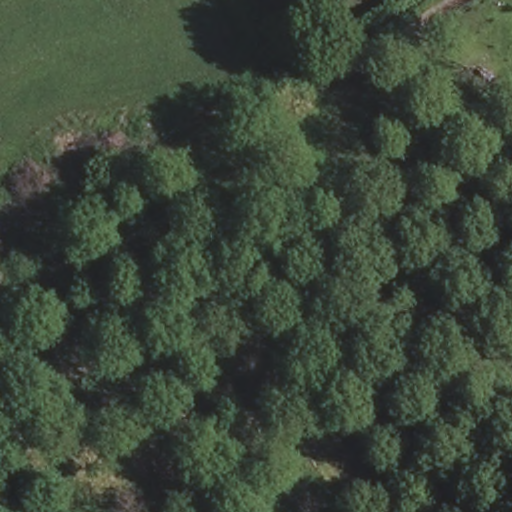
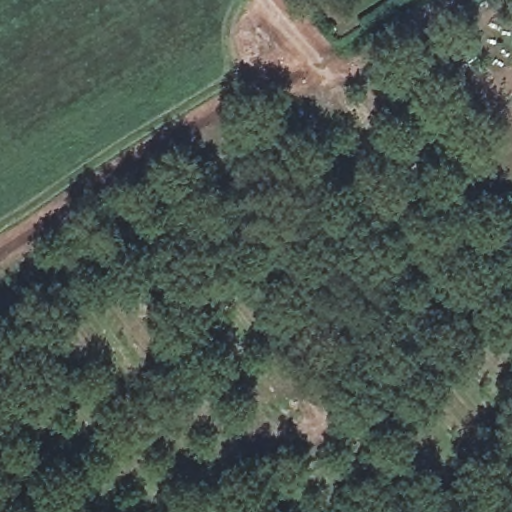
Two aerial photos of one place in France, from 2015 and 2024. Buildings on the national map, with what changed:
[]

